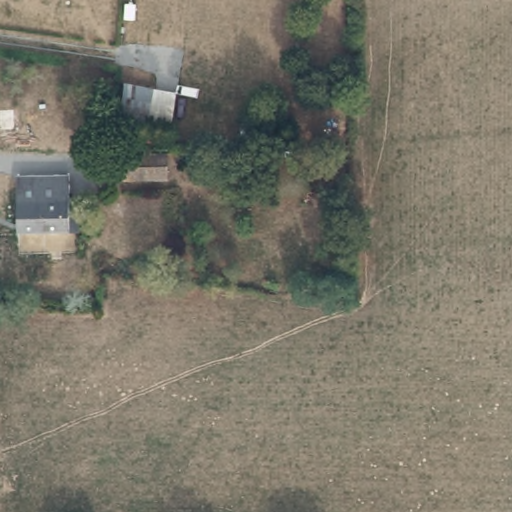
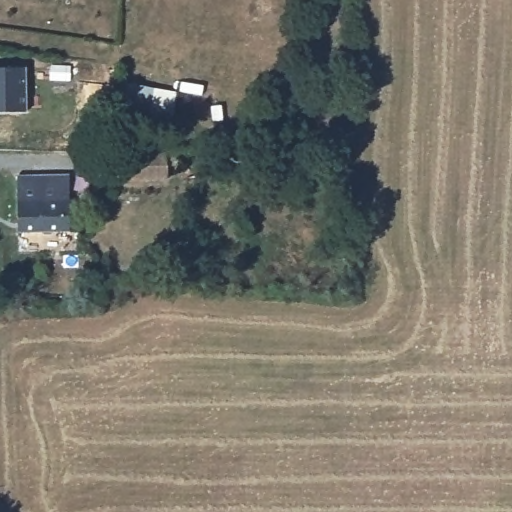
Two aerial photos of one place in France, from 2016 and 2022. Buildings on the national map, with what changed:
new [(27,69),(27,113),(0,113),(0,68),(27,69)]
demolished [(0,132),(0,108),(16,107),(17,131),(0,132)]
unchanged [(126,183),(125,153),(168,153),(168,182),(126,183)]
unchanged [(20,185),(45,180),(72,183),(68,213),(77,214),(76,226),(72,259),(42,255),(12,252),(20,190),(20,185)]

